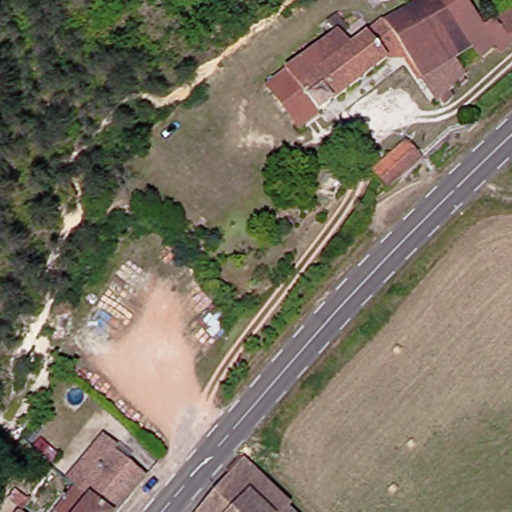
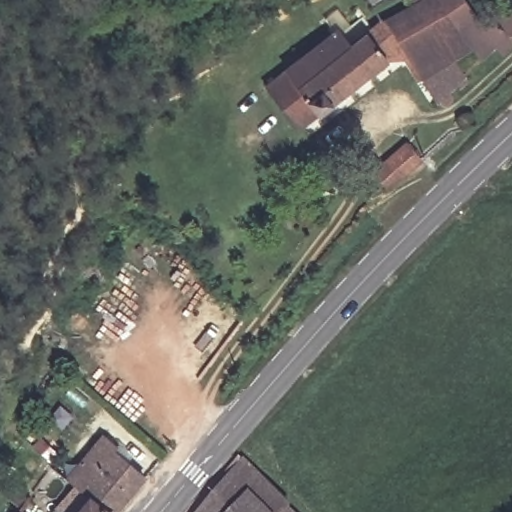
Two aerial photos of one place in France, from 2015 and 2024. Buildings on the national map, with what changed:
unchanged [(411,14),(439,0),(476,0),(495,26),(512,15),(512,41),(489,59),(473,41),(425,71),(401,46),(323,108),(291,72),(343,26),(355,40),(393,20),(411,14)]
unchanged [(489,59),(447,93),(425,71),(473,41),(489,59)]
unchanged [(303,124),(272,91),(291,72),(323,108),(303,124)]
unchanged [(380,171),(405,150),(416,161),(390,183),(380,171)]
unchanged [(112,442),(125,453),(120,458),(148,483),(123,512),(108,512),(85,492),(98,478),(90,468),(112,442)]
unchanged [(300,512),(204,512),(247,462),(300,512)]
unchanged [(108,512),(62,512),(67,505),(81,488),(85,492),(108,512)]
unchanged [(22,503),(30,512),(14,512),(12,510),(22,503)]

